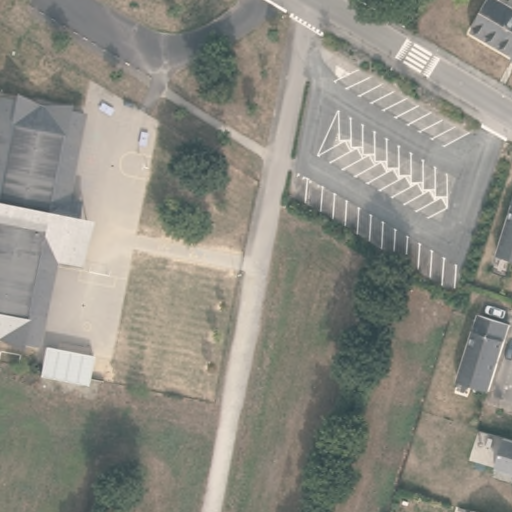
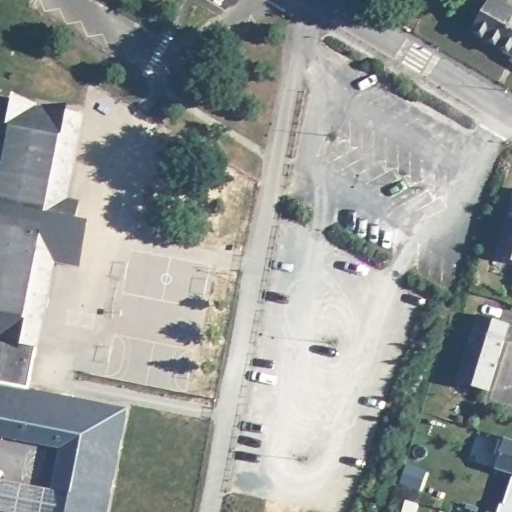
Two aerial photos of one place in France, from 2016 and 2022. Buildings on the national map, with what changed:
unchanged [(498,0),(512,8),(512,55),(470,31),(489,0),(498,0)]
unchanged [(77,155),(0,139),(0,98),(84,115),(77,155)]
unchanged [(0,139),(77,155),(70,190),(81,192),(77,212),(46,205),(44,219),(59,249),(41,336),(0,327),(0,139)]
unchanged [(91,214),(83,257),(59,249),(44,219),(46,205),(77,212),(91,214)]
unchanged [(500,253),(512,212),(512,260),(511,260),(498,256),(500,253)]
unchanged [(461,378),(481,315),(512,325),(491,392),(473,386),(460,382),(461,378)]
new [(30,390),(126,408),(107,512),(66,512),(70,492),(50,488),(59,448),(0,437),(0,327),(41,336),(30,390)]
unchanged [(512,443),(512,475),(497,472),(505,442),(512,443)]
new [(405,466),(423,473),(416,490),(399,484),(405,466)]

